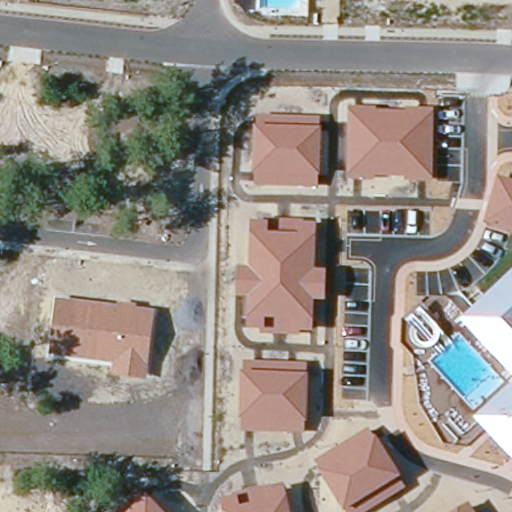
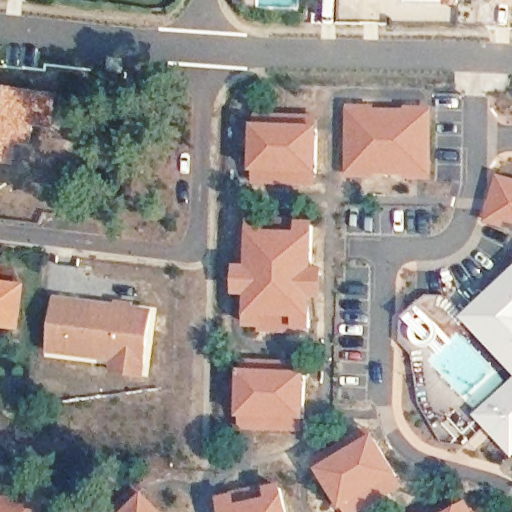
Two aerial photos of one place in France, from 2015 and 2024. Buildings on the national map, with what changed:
new [(0,158),(0,91),(7,92),(8,86),(43,90),(61,92),(58,121),(41,119),(39,139),(25,137),(22,160),(0,158)]
unchanged [(434,181),(403,180),(403,175),(377,174),(376,180),(348,180),(349,107),(380,106),(380,110),(410,112),(410,107),(434,108),(434,181)]
unchanged [(321,128),(319,174),(319,186),(255,184),(255,172),(255,127),(257,116),(320,117),(321,128)]
unchanged [(512,232),(485,224),(497,175),(512,179),(512,232)]
unchanged [(300,335),(258,334),(259,329),(248,328),(247,298),(238,298),(238,267),(249,267),(251,221),(266,221),(266,217),(303,219),(303,224),(317,225),(315,270),(327,270),(326,302),(314,303),(312,331),(298,331),(300,335)]
new [(9,271),(8,278),(7,281),(30,284),(25,322),(0,319),(2,305),(0,305),(0,270),(9,271)]
unchanged [(512,270),(512,377),(459,318),(512,270)]
unchanged [(49,354),(56,301),(117,307),(117,302),(140,305),(139,309),(154,312),(147,380),(112,376),(114,363),(49,354)]
unchanged [(307,375),(306,421),(306,432),(240,431),(241,418),(243,374),(244,361),(306,362),(307,375)]
unchanged [(512,381),(512,459),(472,418),(512,381)]
unchanged [(375,437),(400,477),(407,487),(367,512),(346,512),(346,511),(322,473),(316,461),(369,427),(375,437)]
unchanged [(285,488),(291,512),(225,512),(222,502),(233,499),(232,494),(268,485),(269,491),(285,488)]
unchanged [(140,488),(148,495),(164,512),(114,512),(140,488)]
new [(45,498),(45,512),(0,512),(0,497),(45,498)]
unchanged [(468,503),(473,512),(454,512),(468,503)]

